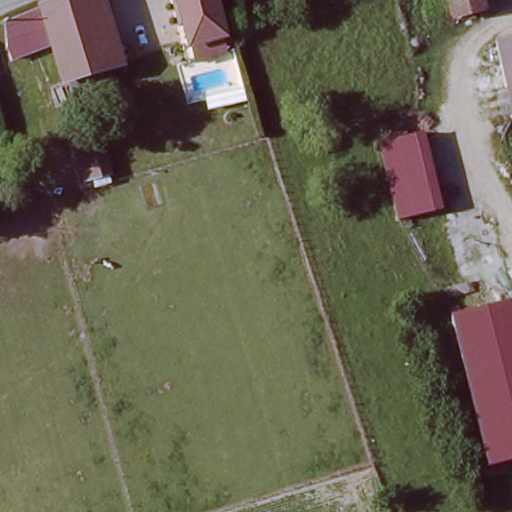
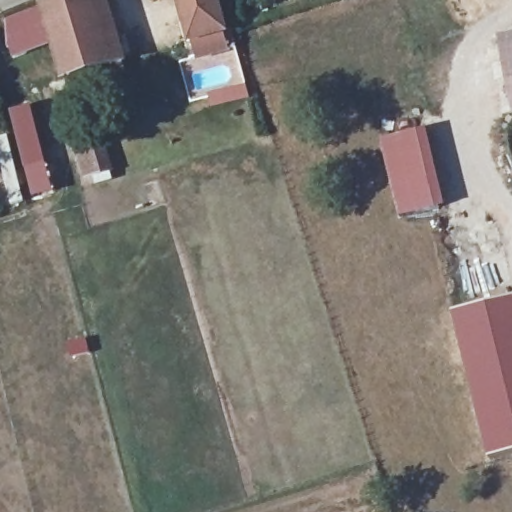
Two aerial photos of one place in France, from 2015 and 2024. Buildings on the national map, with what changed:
unchanged [(86,95),(81,80),(74,82),(50,5),(67,0),(105,0),(125,60),(134,58),(135,62),(126,65),(109,70),(113,87),(86,95)]
unchanged [(234,37),(195,50),(182,0),(222,0),(234,37)]
unchanged [(494,7),(465,17),(460,0),(492,0),(494,7)]
unchanged [(498,109),(509,21),(512,21),(512,111),(498,109)]
new [(32,104),(55,190),(32,196),(9,109),(32,104)]
unchanged [(401,219),(383,143),(428,131),(446,209),(401,219)]
unchanged [(99,190),(95,180),(86,182),(76,145),(104,139),(120,181),(99,190)]
unchanged [(456,313),(512,299),(512,461),(494,465),(456,313)]

